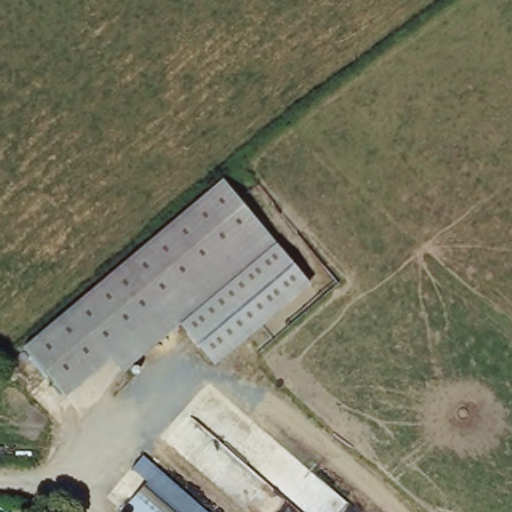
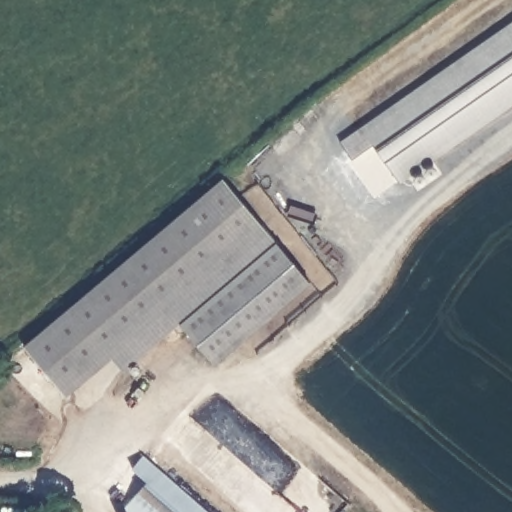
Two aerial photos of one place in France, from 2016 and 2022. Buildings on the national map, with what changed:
new [(400,184),(372,146),(352,159),(341,141),(512,22),(512,105),(400,184)]
unchanged [(111,354),(66,391),(26,343),(225,176),(266,225),(111,354)]
unchanged [(278,240),(124,369),(111,354),(266,225),(278,240)]
unchanged [(311,280),(214,364),(179,324),(278,240),(311,280)]
unchanged [(124,512),(151,478),(139,468),(150,456),(218,512),(124,512)]

